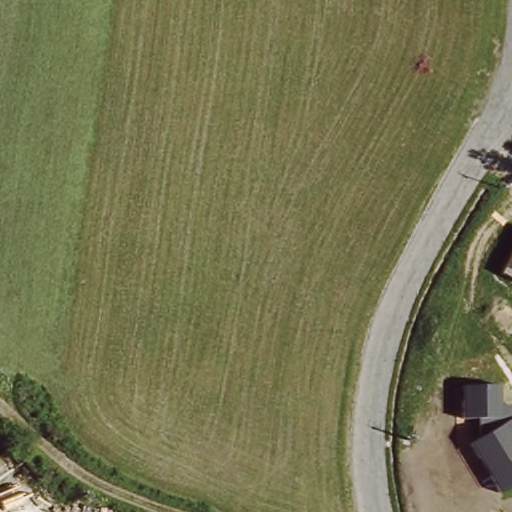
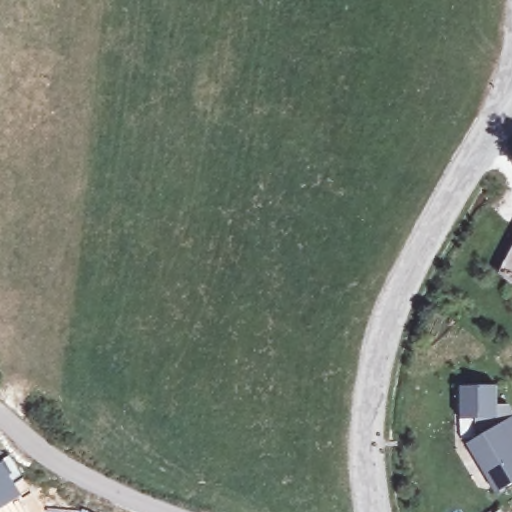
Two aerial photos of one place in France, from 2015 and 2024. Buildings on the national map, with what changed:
unchanged [(498,275),(512,247),(512,281),(498,275)]
unchanged [(497,407),(507,406),(512,414),(512,484),(496,495),(466,446),(476,440),(475,420),(460,419),(459,386),(496,387),(497,407)]
new [(16,475),(14,477),(23,494),(0,508),(0,454),(16,475)]
new [(501,510),(502,512),(498,512),(501,510)]

